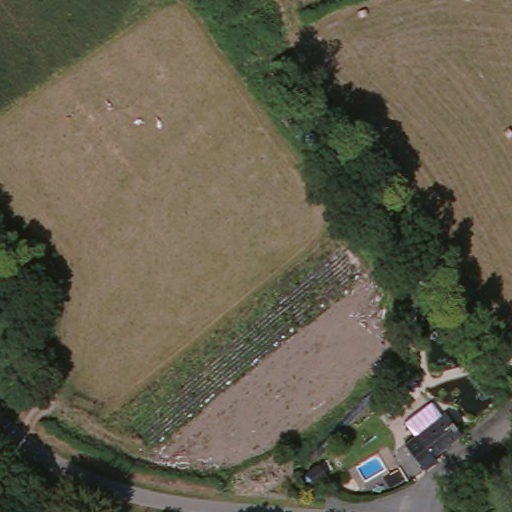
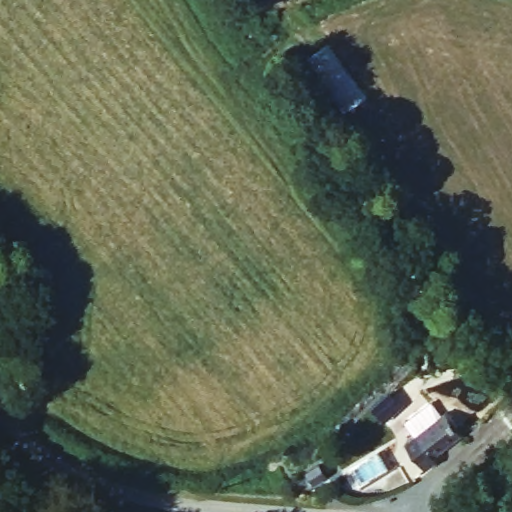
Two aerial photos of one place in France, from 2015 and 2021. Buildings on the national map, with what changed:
new [(367,95),(344,112),(304,60),(328,43),(367,95)]
unchanged [(414,443),(404,430),(431,410),(441,424),(447,419),(453,424),(464,440),(433,462),(436,468),(426,478),(404,450),(414,443)]

